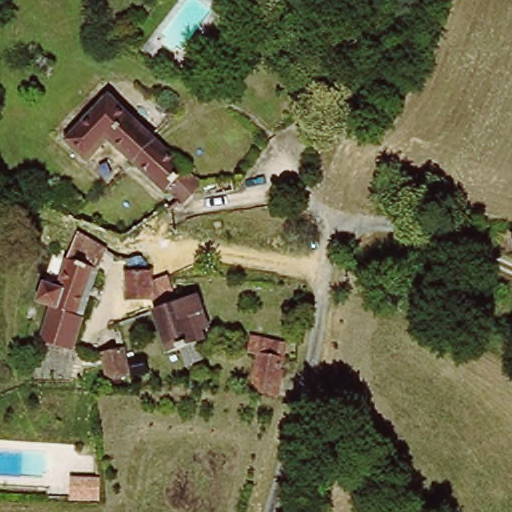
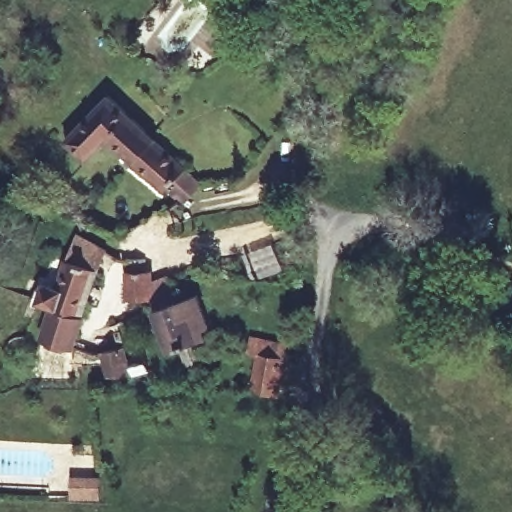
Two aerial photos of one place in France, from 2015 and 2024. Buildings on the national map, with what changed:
unchanged [(110,93),(148,131),(127,152),(109,135),(92,152),(86,156),(70,139),(66,134),(87,115),(110,93)]
unchanged [(127,152),(148,131),(201,184),(181,202),(166,186),(163,189),(127,152)]
unchanged [(75,248),(78,248),(83,235),(112,245),(79,338),(48,327),(75,248)]
unchanged [(146,281),(151,282),(148,307),(124,307),(125,282),(128,282),(130,267),(146,267),(146,281)]
unchanged [(183,371),(177,353),(163,358),(148,317),(175,308),(193,302),(206,333),(216,359),(201,364),(183,371)]
unchanged [(249,351),(253,336),(293,346),(282,397),(253,387),(261,355),(249,351)]
unchanged [(151,373),(133,380),(108,375),(105,353),(128,349),(129,360),(148,357),(151,373)]

